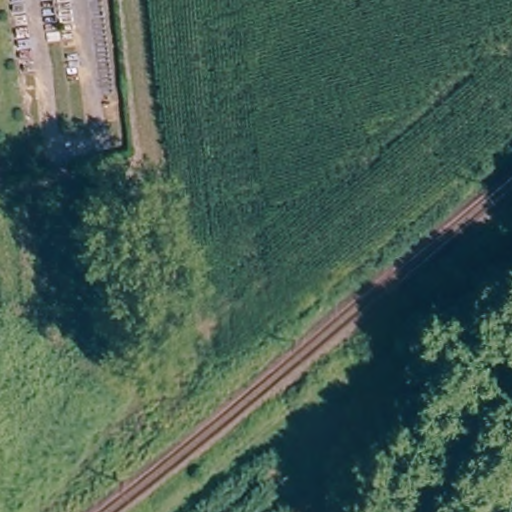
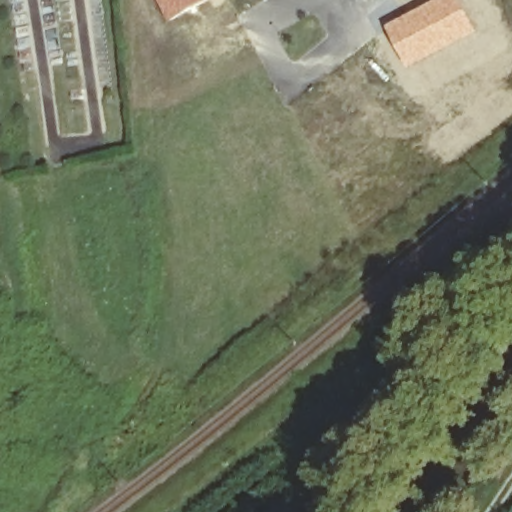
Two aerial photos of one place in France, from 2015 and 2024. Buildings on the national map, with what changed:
new [(168,23),(155,0),(206,0),(168,23)]
new [(437,0),(460,0),(477,33),(409,68),(387,26),(437,0)]

